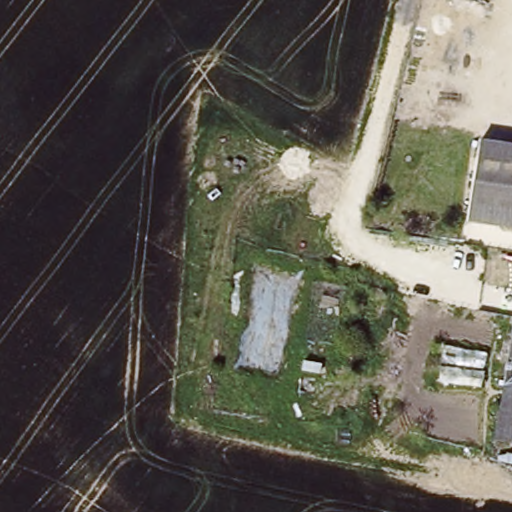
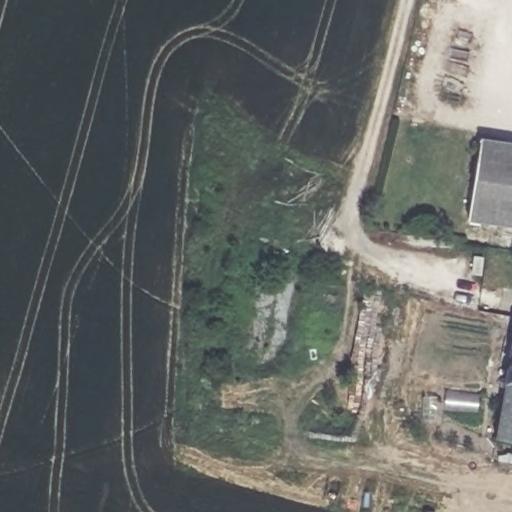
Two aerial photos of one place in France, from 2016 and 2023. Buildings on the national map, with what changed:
unchanged [(472,223),(486,143),(512,147),(512,230),(472,223)]
unchanged [(496,439),(507,374),(512,341),(512,442),(496,439)]

